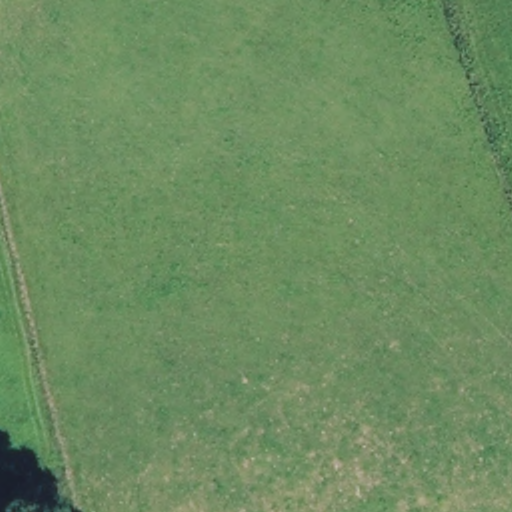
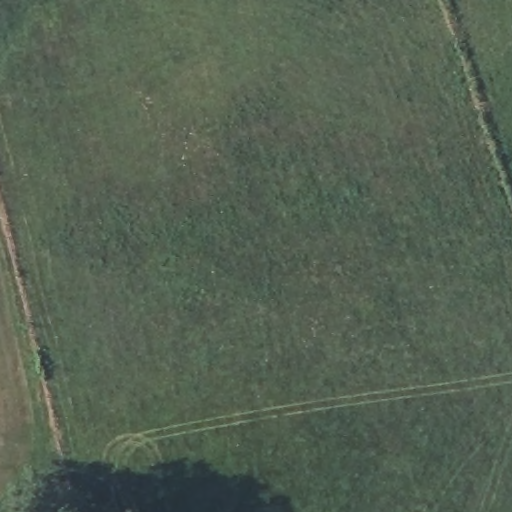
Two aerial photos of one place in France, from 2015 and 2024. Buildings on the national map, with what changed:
[]

